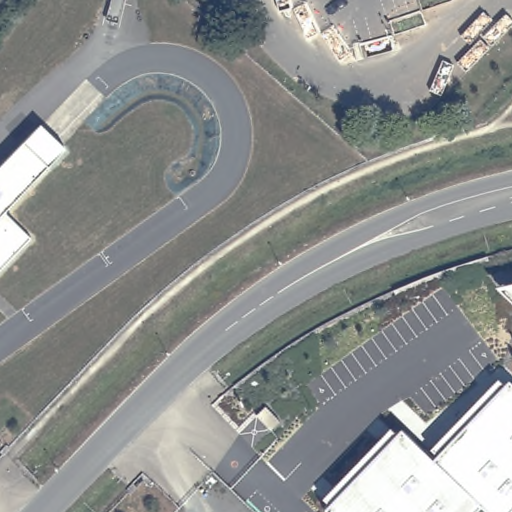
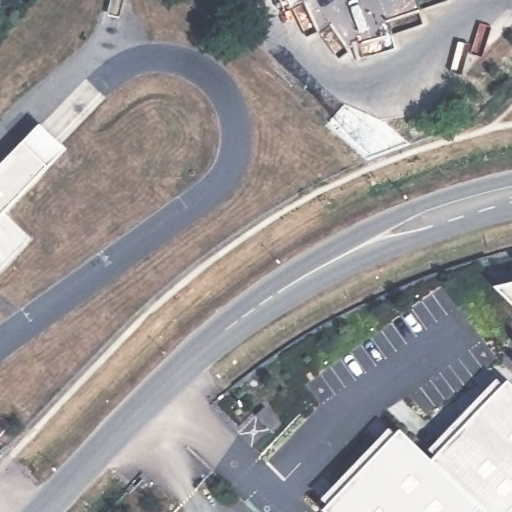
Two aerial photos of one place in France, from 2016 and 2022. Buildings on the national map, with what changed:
unchanged [(40,124),(68,149),(50,166),(5,216),(29,239),(0,270),(0,166),(23,141),(40,124)]
unchanged [(495,288),(512,284),(512,304),(495,288)]
unchanged [(512,386),(512,512),(485,512),(482,510),(480,512),(327,512),(318,503),(395,424),(425,455),(501,376),(512,386)]

